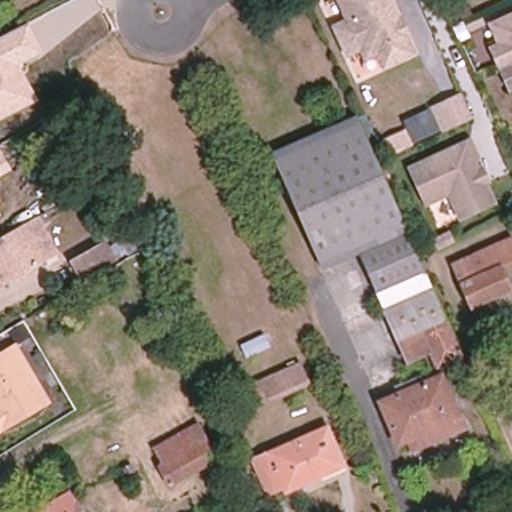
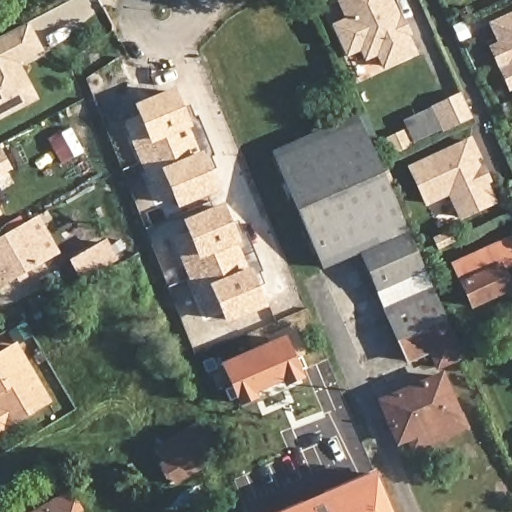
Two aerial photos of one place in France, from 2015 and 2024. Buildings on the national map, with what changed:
unchanged [(385,68),(379,54),(367,60),(362,49),(348,55),(336,27),(349,21),(339,0),(390,0),(401,24),(405,34),(414,54),(385,68)]
unchanged [(500,68),(490,48),(499,44),(490,24),(512,13),(512,87),(509,89),(500,68)]
unchanged [(21,70),(36,101),(0,119),(0,35),(26,22),(42,51),(22,61),(21,70)]
new [(139,116),(134,104),(175,87),(183,107),(190,105),(195,118),(198,116),(214,156),(211,157),(215,169),(210,171),(219,192),(177,209),(172,197),(156,203),(124,123),(139,116)]
unchanged [(474,121),(447,133),(436,111),(464,98),(474,121)]
unchanged [(324,263),(273,148),(355,111),(357,111),(377,159),(385,178),(418,254),(423,266),(378,286),(361,247),(324,263)]
unchanged [(387,141),(404,134),(410,148),(393,155),(387,141)]
unchanged [(468,143),(473,156),(470,157),(475,169),(480,166),(486,180),(482,182),(490,200),(457,215),(446,190),(423,201),(407,167),(407,166),(466,139),(468,143)]
new [(188,233),(183,220),(223,203),(233,224),(238,221),(242,234),(247,232),(261,271),(258,273),(263,285),(258,287),(267,308),(225,325),(220,312),(205,319),(171,239),(188,233)]
unchanged [(36,218),(56,252),(47,257),(0,284),(0,238),(27,223),(36,218)]
unchanged [(512,240),(512,267),(502,271),(511,289),(472,306),(462,284),(454,265),(512,240)]
unchanged [(82,277),(74,262),(105,244),(114,259),(82,277)]
new [(425,272),(446,322),(397,341),(377,293),(425,272)]
unchanged [(446,322),(461,360),(436,370),(428,353),(405,362),(397,341),(446,322)]
new [(285,336),(294,360),(301,357),(306,369),(301,371),(305,379),(284,388),(282,381),(255,393),(258,399),(238,406),(221,363),(285,336)]
unchanged [(0,352),(17,342),(51,401),(0,433),(0,352)]
demolished [(308,383),(272,400),(271,399),(254,406),(246,388),(300,364),(308,383)]
unchanged [(462,424),(412,445),(407,435),(396,440),(379,399),(440,373),(462,424)]
unchanged [(156,450),(199,425),(218,458),(170,485),(161,468),(165,466),(156,450)]
demolished [(328,427),(345,465),(286,492),(284,487),(269,494),(254,460),(328,427)]
new [(374,471),(391,512),(280,512),(374,471)]
unchanged [(70,493),(80,510),(76,512),(37,512),(70,493)]

